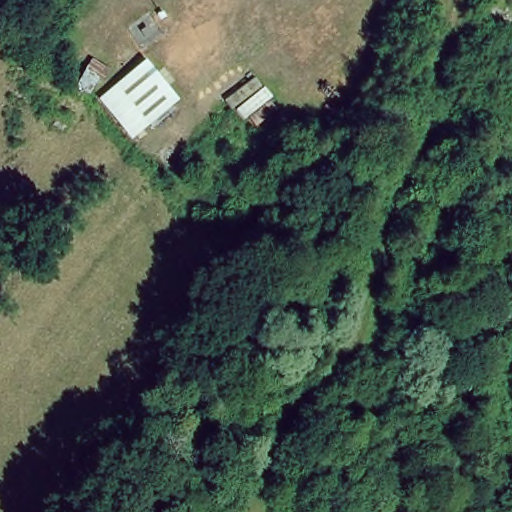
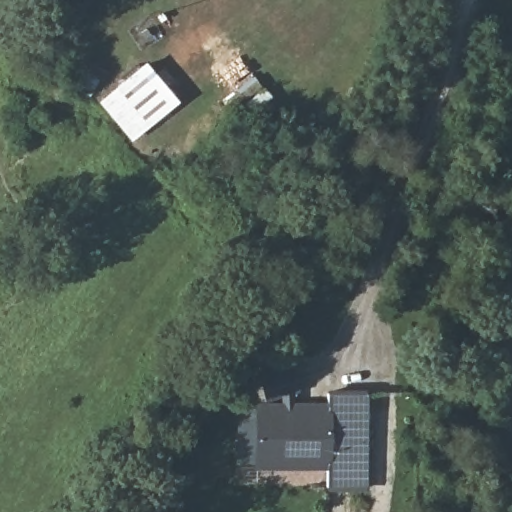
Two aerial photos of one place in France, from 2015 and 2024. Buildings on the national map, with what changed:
demolished [(512,0),(512,69),(471,7),(483,0),(512,0)]
unchanged [(143,60),(181,104),(131,144),(96,101),(143,60)]
new [(370,491),(329,489),(328,472),(256,470),(255,463),(239,463),(240,408),(258,407),(259,403),(331,402),(330,394),(370,395),(370,491)]

